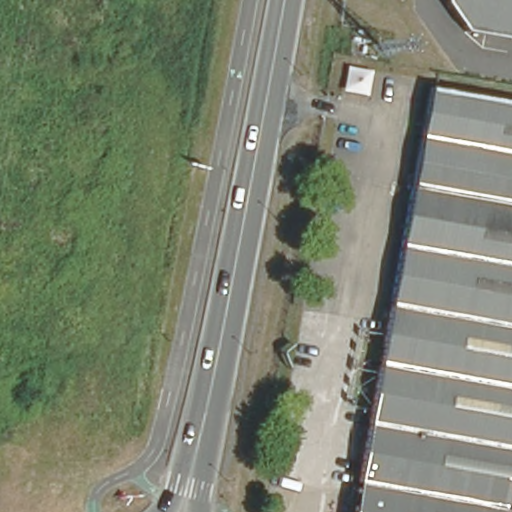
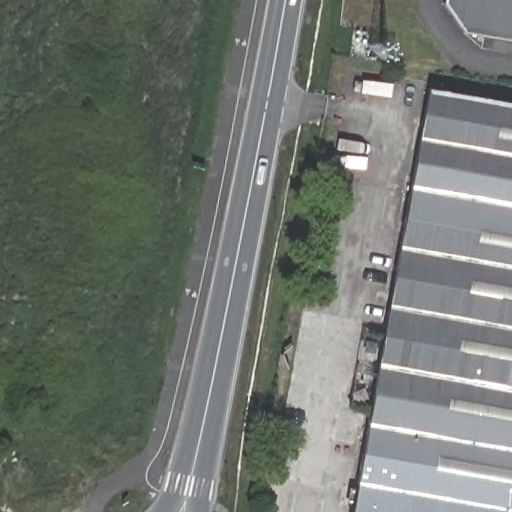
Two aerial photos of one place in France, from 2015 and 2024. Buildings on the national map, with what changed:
unchanged [(445,2),(446,0),(512,0),(512,42),(464,34),(445,2)]
unchanged [(411,187),(428,88),(512,103),(512,512),(352,512),(411,187)]

